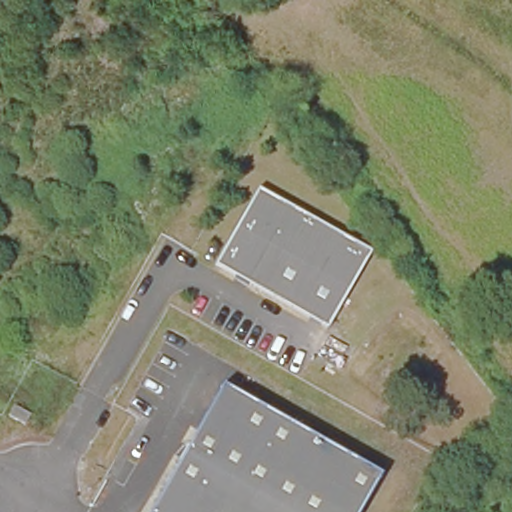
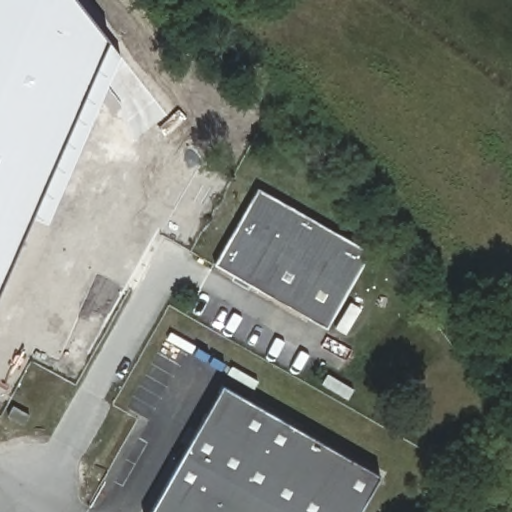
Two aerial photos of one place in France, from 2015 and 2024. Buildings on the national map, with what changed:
new [(79,0),(109,38),(0,285),(0,0),(79,0)]
unchanged [(254,185),(366,250),(322,326),(210,261),(254,185)]
unchanged [(217,385),(375,475),(355,512),(145,512),(217,385)]

